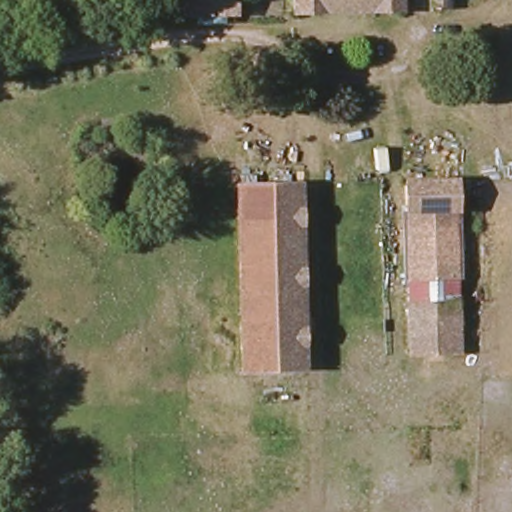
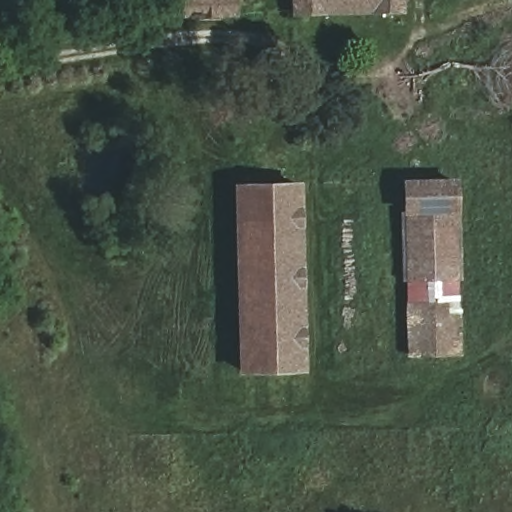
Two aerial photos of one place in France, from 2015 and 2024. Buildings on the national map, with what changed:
unchanged [(230,12),(181,12),(181,0),(228,0),(230,12)]
unchanged [(293,14),(293,0),(409,0),(410,15),(367,15),(316,14),(293,14)]
unchanged [(410,357),(407,172),(457,173),(460,357),(410,357)]
unchanged [(297,184),(303,369),(240,370),(237,329),(234,184),(297,184)]

